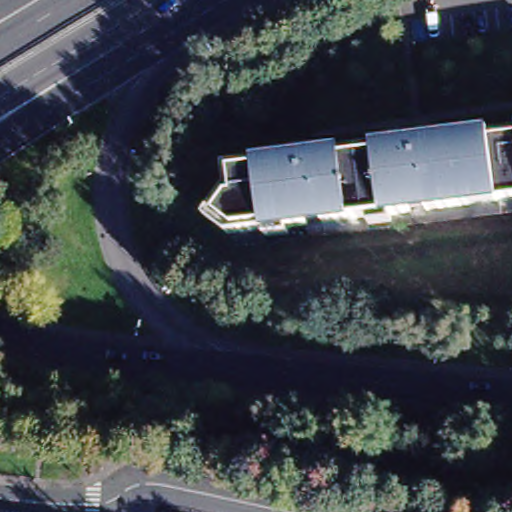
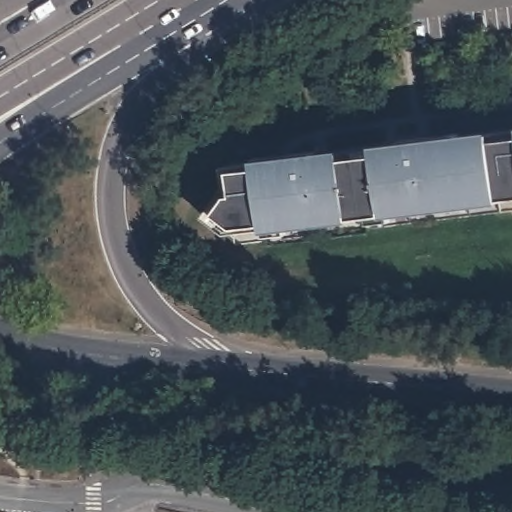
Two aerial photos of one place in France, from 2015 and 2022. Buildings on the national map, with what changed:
unchanged [(271,162),(312,157),(312,152),(330,150),(331,154),(415,144),(415,140),(433,137),(434,141),(450,139),(475,136),(512,131),(512,195),(512,192),(483,195),(484,202),(440,208),(439,196),(422,198),(424,210),(405,212),(382,216),(337,222),(336,210),(320,212),(322,224),(255,232),(230,213),(243,196),(242,187),(239,166),(271,162)]

